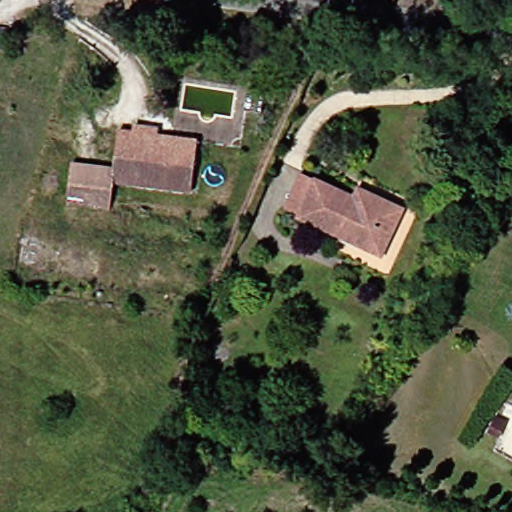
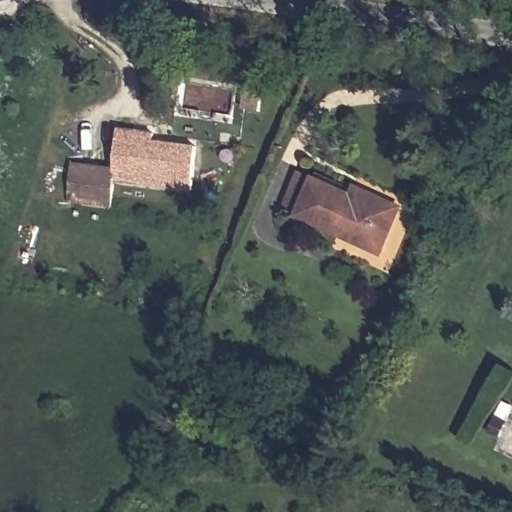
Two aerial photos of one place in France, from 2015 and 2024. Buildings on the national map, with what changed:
unchanged [(104,185),(102,210),(58,206),(58,168),(106,169),(110,134),(128,135),(132,127),(150,129),(149,136),(190,141),(189,154),(185,191),(104,185)]
unchanged [(291,220),(307,186),(315,170),(350,187),(395,209),(372,259),(349,248),(335,241),(291,220)]
unchanged [(476,428),(489,438),(477,453),(465,446),(476,428)]

